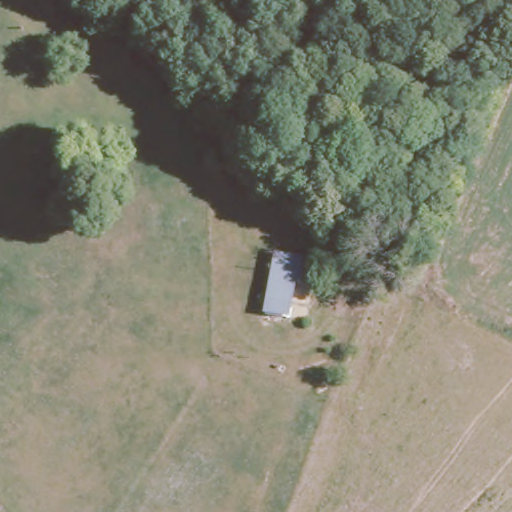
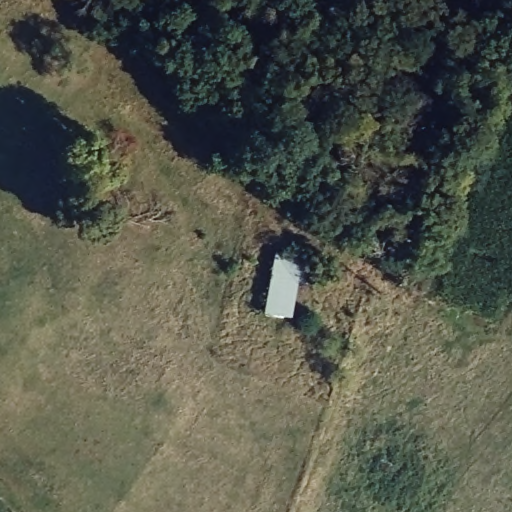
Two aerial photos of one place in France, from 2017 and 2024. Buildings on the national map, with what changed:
unchanged [(271,259),(307,262),(306,292),(291,293),(288,323),(262,323),(271,259)]

